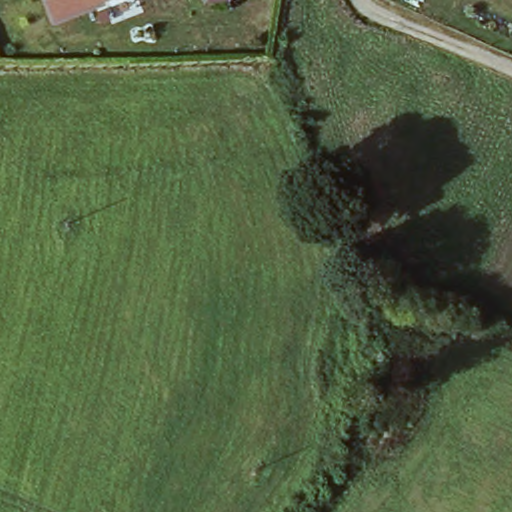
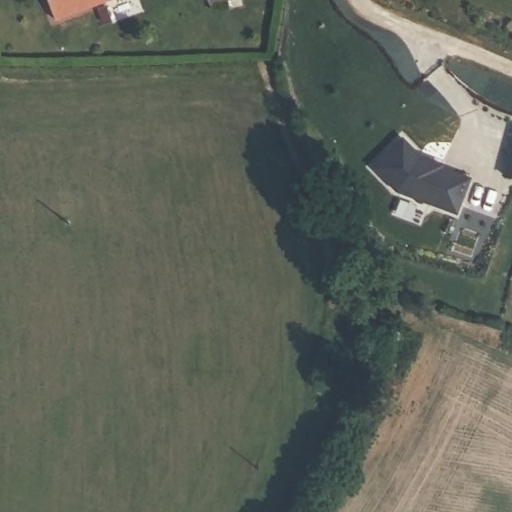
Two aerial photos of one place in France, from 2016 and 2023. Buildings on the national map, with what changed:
unchanged [(48,0),(124,0),(58,24),(48,0)]
new [(204,0),(226,0),(206,6),(204,0)]
new [(401,138),(420,158),(443,166),(441,171),(466,179),(457,212),(396,191),(372,166),(401,138)]
new [(504,175),(512,139),(512,177),(504,175)]

